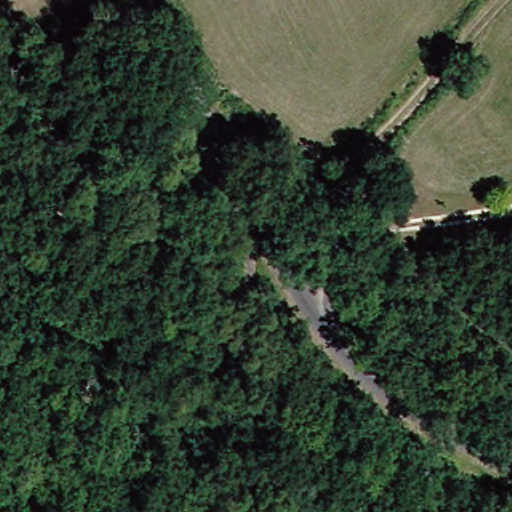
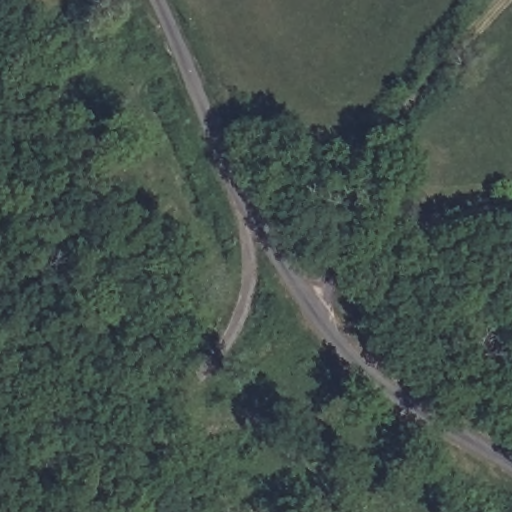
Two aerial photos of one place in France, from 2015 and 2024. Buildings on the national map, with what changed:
[]

